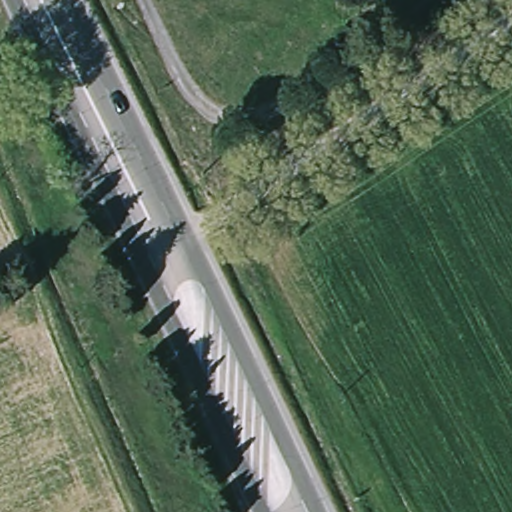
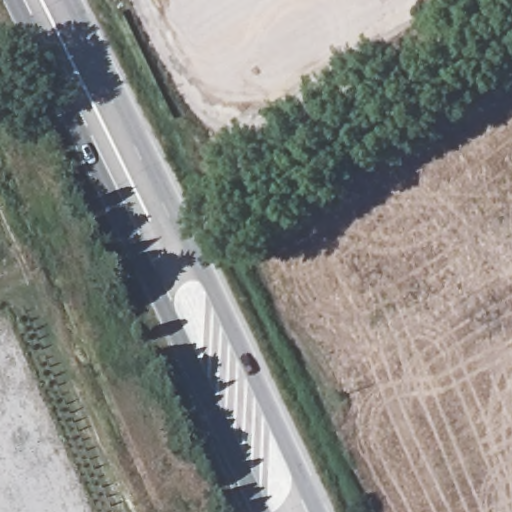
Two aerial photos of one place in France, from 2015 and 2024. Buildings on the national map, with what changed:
unchanged [(307,39),(323,29),(333,46),(316,55),(307,39)]

